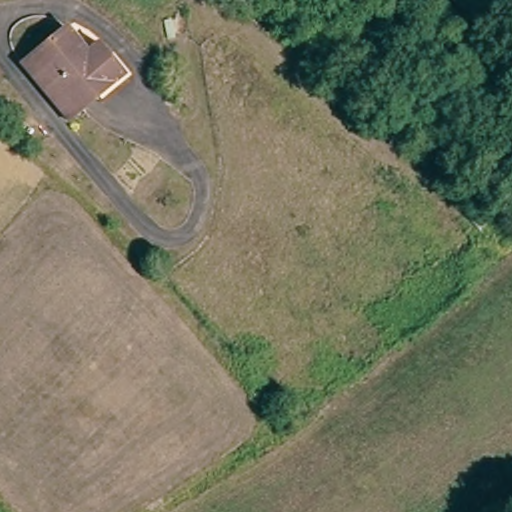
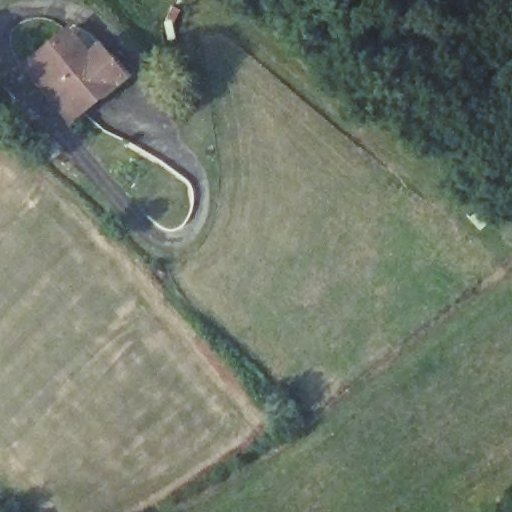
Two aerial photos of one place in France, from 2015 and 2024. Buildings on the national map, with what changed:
unchanged [(66,29),(85,50),(97,40),(110,55),(128,77),(82,116),(33,59),(66,29)]
unchanged [(82,116),(72,125),(22,68),(33,59),(82,116)]

